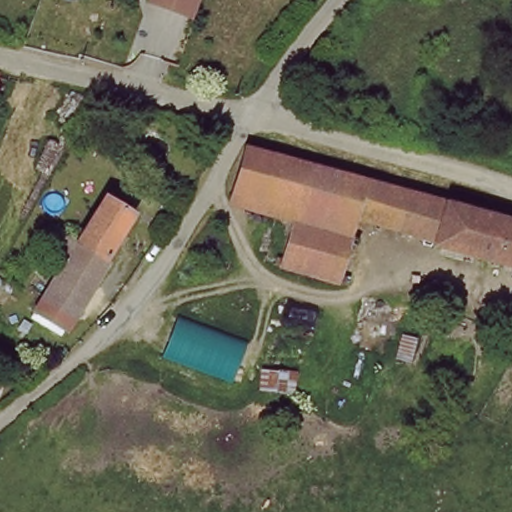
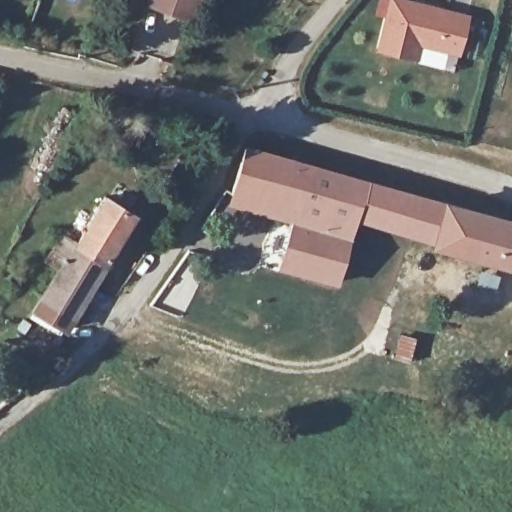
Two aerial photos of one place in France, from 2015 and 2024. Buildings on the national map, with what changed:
unchanged [(155,0),(190,0),(187,10),(155,0)]
new [(460,55),(420,44),(416,60),(374,50),(388,0),(416,0),(470,13),(460,55)]
unchanged [(0,72),(0,70),(1,70),(0,72)]
unchanged [(430,252),(432,245),(351,223),(337,277),(351,280),(348,292),(283,274),(296,213),(233,198),(247,147),(512,218),(512,273),(430,252)]
unchanged [(49,259),(67,233),(79,243),(111,196),(139,215),(105,263),(111,269),(94,292),(59,269),(49,259)]
unchanged [(70,327),(35,303),(59,269),(94,292),(70,327)]
demolished [(235,383),(162,361),(175,316),(248,347),(235,383)]
demolished [(255,392),(270,335),(308,342),(300,368),(296,398),(255,392)]

